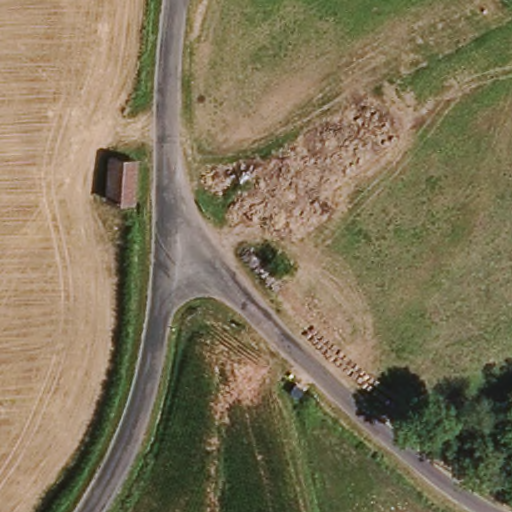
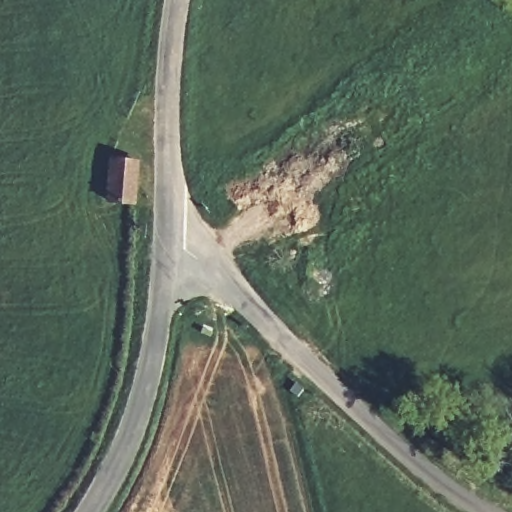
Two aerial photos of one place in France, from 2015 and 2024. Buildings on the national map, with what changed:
unchanged [(106,201),(109,164),(135,165),(132,202),(106,201)]

